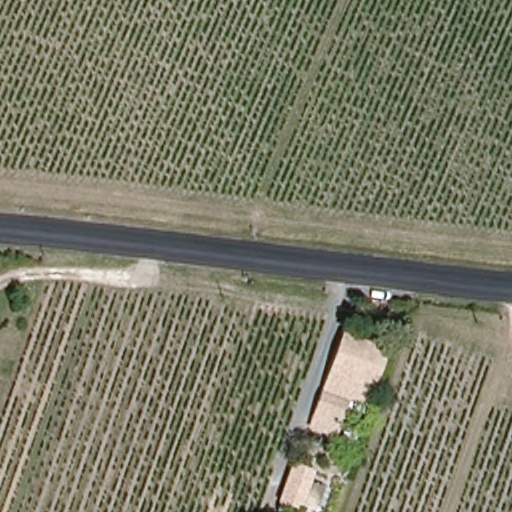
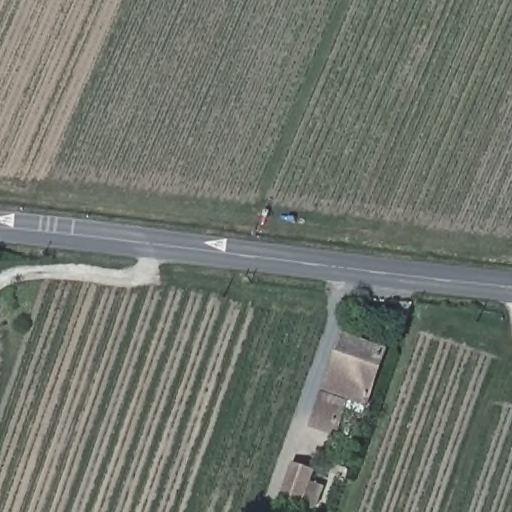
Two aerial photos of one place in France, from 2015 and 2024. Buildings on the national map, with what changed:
unchanged [(383,345),(363,401),(346,395),(332,427),(309,420),(342,331),(383,345)]
unchanged [(333,512),(321,512),(280,497),(291,459),(346,479),(333,512)]

